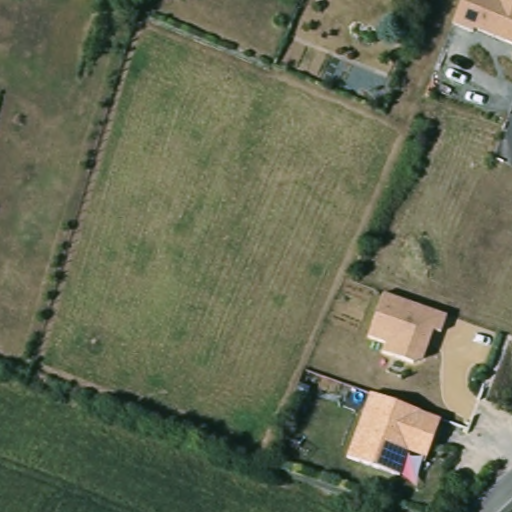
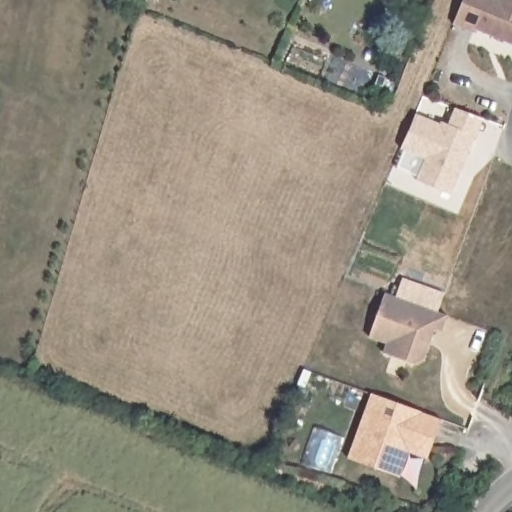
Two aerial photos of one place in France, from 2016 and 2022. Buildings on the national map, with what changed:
unchanged [(462,0),(512,0),(512,45),(453,22),(462,0)]
new [(415,180),(424,159),(400,149),(415,114),(439,123),(440,121),(447,124),(454,107),(483,119),(452,195),(415,180)]
unchanged [(442,335),(432,332),(422,362),(415,363),(382,354),(385,344),(368,337),(385,292),(447,316),(442,335)]
unchanged [(442,417),(428,461),(411,454),(403,475),(350,457),(372,393),(442,417)]

